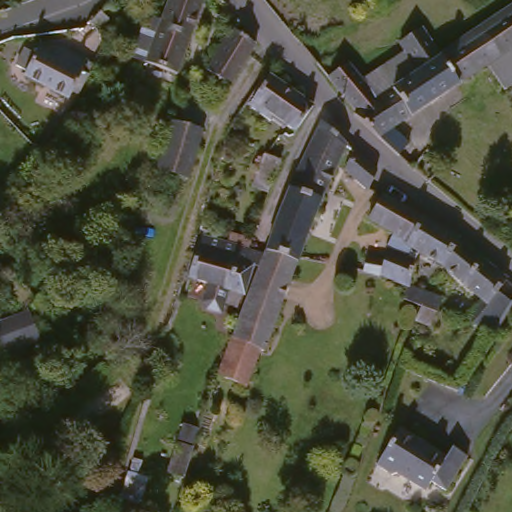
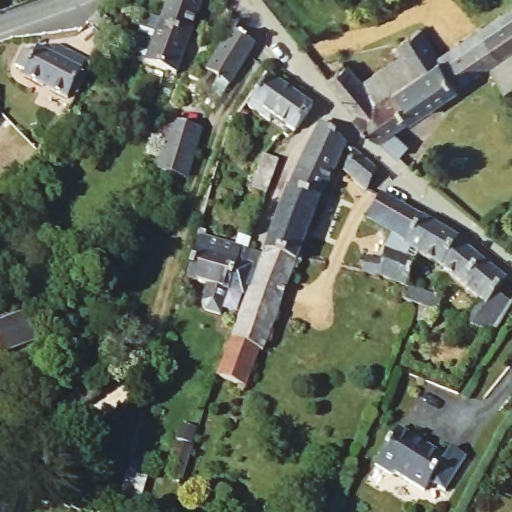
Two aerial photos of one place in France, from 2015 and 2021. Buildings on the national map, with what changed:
unchanged [(142,69),(140,67),(165,0),(200,0),(170,77),(170,79),(165,76),(160,89),(138,81),(142,72),(142,69)]
unchanged [(338,70),(342,66),(345,70),(347,67),(361,85),(405,55),(398,45),(424,29),(437,49),(433,51),(438,58),(512,9),(512,89),(510,90),(505,94),(487,68),(390,134),(407,149),(396,160),(388,152),(381,145),(354,120),(354,119),(356,116),(328,81),(340,72),(338,70)]
unchanged [(95,28),(85,39),(78,32),(88,22),(95,28)]
unchanged [(233,34),(255,50),(252,53),(227,89),(217,81),(208,95),(205,92),(197,86),(233,34)]
unchanged [(64,102),(62,104),(17,80),(20,75),(10,70),(19,55),(28,59),(31,54),(33,55),(35,52),(54,52),(87,70),(85,73),(69,105),(64,102)]
unchanged [(242,110),(247,102),(252,105),(269,79),(312,110),(295,135),(254,107),(249,115),(242,110)]
unchanged [(362,192),(332,166),(319,196),(299,247),(257,356),(254,355),(225,343),(234,321),(235,318),(257,263),(257,261),(255,260),(260,248),(267,230),(282,193),(289,177),(315,125),(315,123),(317,125),(327,135),(372,174),(363,189),(362,192)]
unchanged [(198,132),(184,181),(155,174),(170,125),(198,132)]
unchanged [(6,149),(11,144),(21,154),(24,157),(29,162),(25,167),(17,159),(6,149)]
unchanged [(245,187),(253,165),(268,170),(260,192),(245,187)]
unchanged [(367,221),(382,197),(420,220),(406,245),(392,237),(367,221)]
unchanged [(440,271),(412,255),(404,250),(406,245),(420,220),(457,242),(456,245),(507,285),(498,297),(512,308),(512,310),(491,343),(473,329),(487,310),(440,271)]
unchanged [(200,236),(199,241),(192,240),(194,234),(200,236)]
unchanged [(383,263),(384,259),(385,255),(392,237),(406,245),(404,250),(412,255),(408,263),(418,267),(409,290),(380,279),(363,275),(365,260),(383,263)]
unchanged [(239,262),(237,270),(245,272),(236,301),(220,296),(215,315),(213,320),(197,315),(194,309),(193,307),(199,288),(181,283),(194,241),(199,243),(205,245),(223,251),(225,246),(242,251),(240,256),(235,255),(233,260),(239,262)]
unchanged [(360,283),(354,282),(355,275),(362,275),(360,283)]
unchanged [(438,319),(436,319),(432,330),(414,322),(418,310),(404,304),(409,290),(445,305),(438,319)]
unchanged [(19,320),(32,347),(0,359),(0,325),(19,320)]
unchanged [(232,395),(234,388),(212,380),(225,343),(254,355),(240,391),(238,397),(232,395)]
unchanged [(396,429),(443,460),(450,448),(465,457),(443,492),(429,482),(422,493),(395,475),(388,478),(372,467),(372,466),(396,429)]
unchanged [(189,474),(188,476),(172,472),(180,441),(197,445),(189,474)]
unchanged [(138,512),(131,512),(116,508),(125,471),(149,478),(138,512)]

